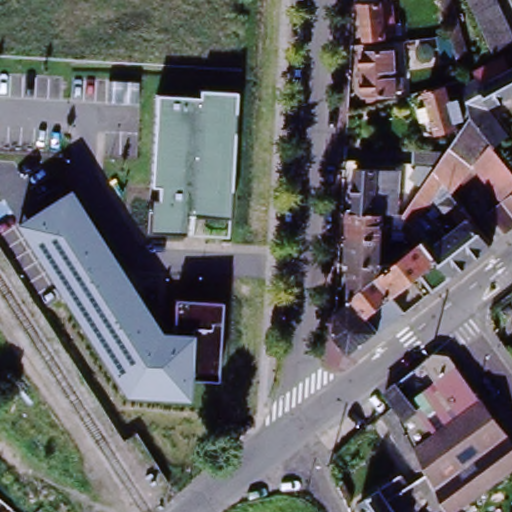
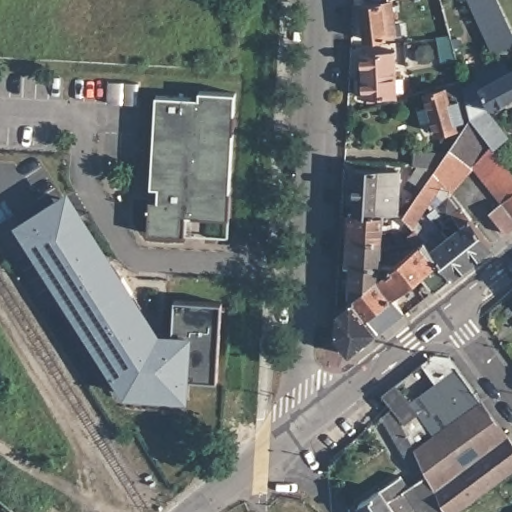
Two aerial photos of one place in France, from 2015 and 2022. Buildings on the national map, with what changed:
unchanged [(512,40),(492,50),(468,0),(498,0),(512,29),(512,40)]
unchanged [(367,41),(361,7),(391,1),(397,35),(367,41)]
unchanged [(364,98),(361,53),(396,51),(398,96),(364,98)]
unchanged [(507,132),(495,144),(486,133),(472,115),(470,113),(468,105),(467,103),(462,84),(476,76),(473,68),(503,53),(510,66),(512,65),(512,93),(487,106),(507,132)]
unchanged [(467,103),(468,105),(470,113),(466,115),(466,117),(457,120),(458,125),(439,130),(435,117),(424,120),(420,107),(431,104),(427,90),(461,81),(462,84),(467,103)]
unchanged [(198,98),(200,92),(235,94),(229,219),(186,217),(185,236),(148,234),(151,201),(157,202),(158,189),(150,188),(156,97),(198,98)]
unchanged [(336,307),(346,299),(350,297),(351,295),(353,260),(347,260),(350,234),(351,210),(355,210),(357,165),(380,167),(390,167),(390,181),(389,204),(378,203),(377,211),(385,211),(382,232),(382,236),(382,247),(381,256),(400,248),(405,254),(410,250),(417,245),(414,241),(413,240),(408,233),(416,227),(405,212),(420,191),(425,183),(413,175),(421,164),(414,163),(415,145),(450,147),(472,115),(486,133),(495,144),(512,166),(512,227),(506,231),(491,209),(502,200),(475,165),(452,189),(443,179),(428,202),(418,217),(432,236),(442,227),(447,235),(451,232),(471,259),(452,273),(435,287),(422,269),(405,283),(392,294),(404,310),(380,329),(350,351),(335,331),(336,307)]
unchanged [(70,191),(162,333),(175,333),(175,301),(221,304),(217,382),(191,380),(189,403),(125,398),(15,226),(70,191)]
unchanged [(432,216),(427,210),(431,206),(435,203),(440,210),(436,213),(432,216)]
unchanged [(451,232),(462,223),(453,212),(463,204),(493,242),(471,259),(451,232)]
unchanged [(401,421),(418,408),(410,396),(432,380),(418,361),(433,350),(446,353),(455,365),(512,444),(512,465),(449,512),(447,512),(443,503),(401,421)]
unchanged [(430,512),(365,512),(356,499),(377,486),(385,497),(418,476),(404,452),(402,453),(380,411),(390,402),(381,390),(393,381),(413,407),(401,417),(393,406),(401,421),(443,503),(430,512)]
unchanged [(447,512),(430,512),(443,503),(447,512)]
unchanged [(512,512),(511,512),(512,511),(512,512)]

